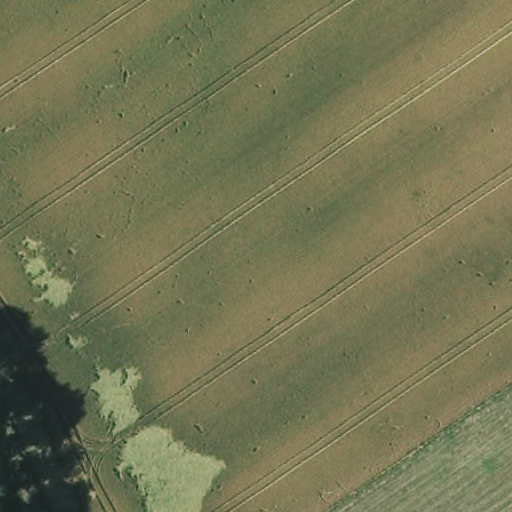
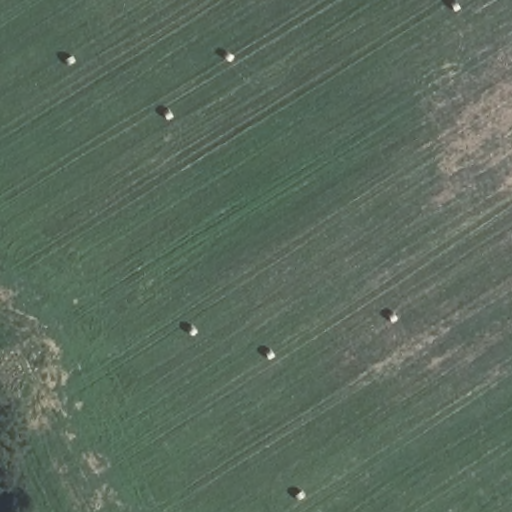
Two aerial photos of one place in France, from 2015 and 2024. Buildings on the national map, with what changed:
[]

